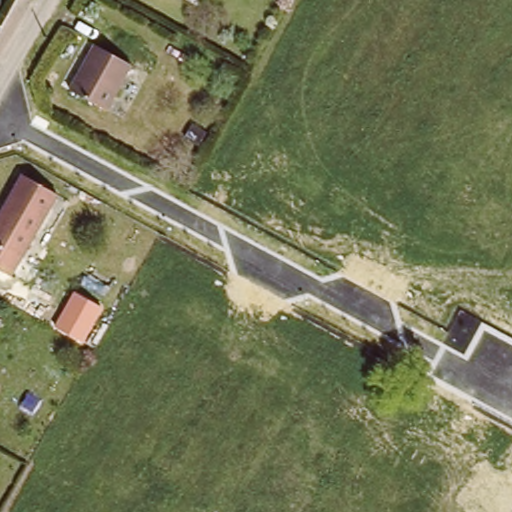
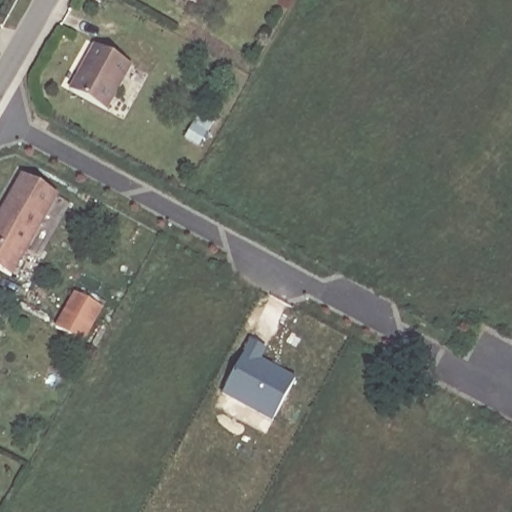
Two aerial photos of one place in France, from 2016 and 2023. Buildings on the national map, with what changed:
unchanged [(75,87),(101,42),(135,62),(110,107),(75,87)]
unchanged [(26,256),(14,275),(0,266),(0,222),(29,174),(62,194),(26,256)]
unchanged [(54,326),(74,291),(102,308),(83,341),(54,326)]
new [(247,341),(261,349),(255,360),(291,379),(268,420),(218,393),(247,341)]

